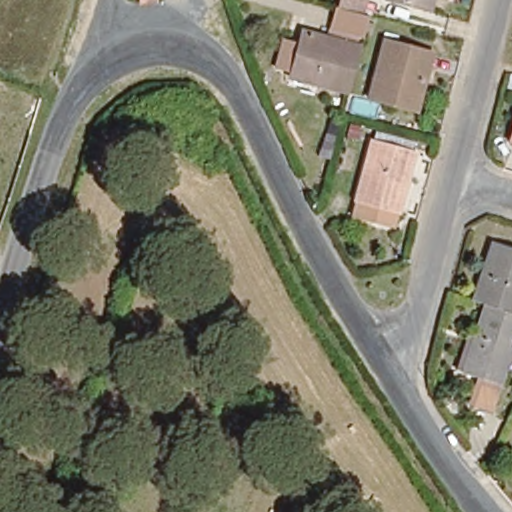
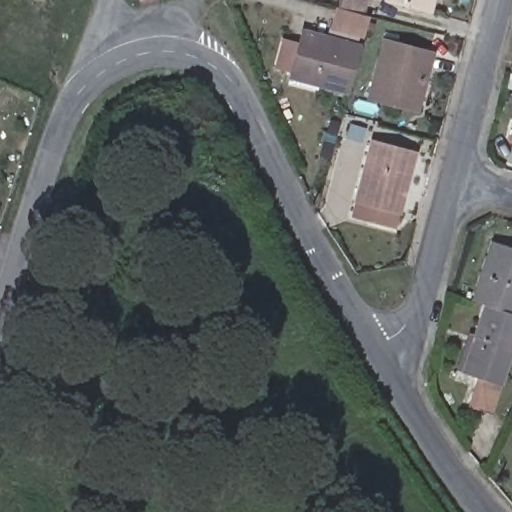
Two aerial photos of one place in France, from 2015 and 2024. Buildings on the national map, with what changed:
unchanged [(337,9),(340,1),(340,0),(365,0),(363,7),(370,9),(365,33),(334,24),(337,9)]
unchanged [(423,11),(386,0),(437,0),(433,14),(423,11)]
unchanged [(290,69),(278,66),(286,37),(300,41),(303,29),(362,44),(350,96),(320,88),(288,79),(290,69)]
unchanged [(415,110),(367,97),(382,39),(430,52),(426,68),(421,89),(415,110)]
unchanged [(352,218),(375,142),(420,155),(413,175),(406,198),(396,231),(352,218)]
unchanged [(487,307),(474,303),(495,244),(512,250),(512,316),(487,307)]
unchanged [(483,381),(466,374),(459,372),(470,336),(477,339),(487,307),(512,316),(512,361),(495,412),(480,407),(475,405),(483,381)]

